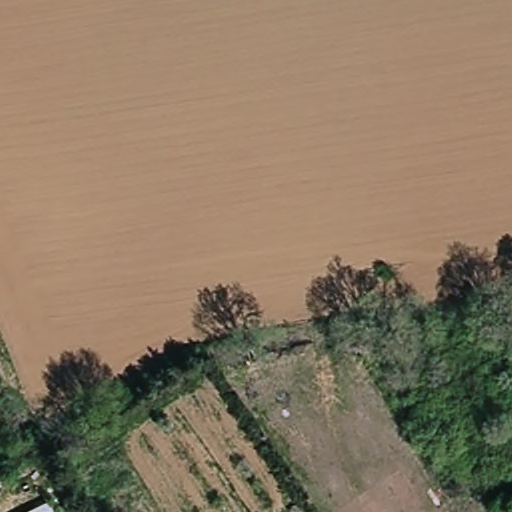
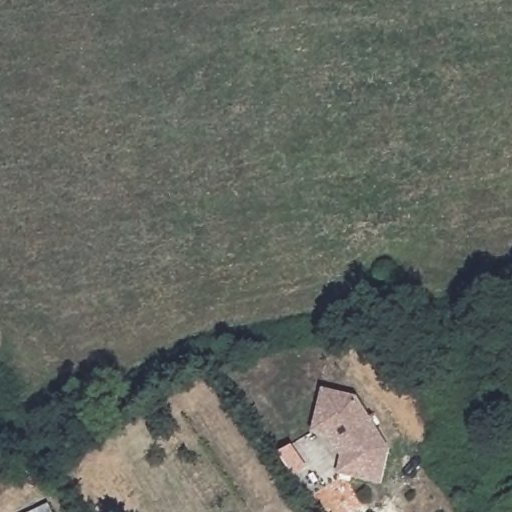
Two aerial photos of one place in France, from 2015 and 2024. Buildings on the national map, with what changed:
new [(320,400),(354,407),(387,458),(379,492),(349,485),(336,482),(340,466),(327,446),(311,442),(314,431),(320,400)]

